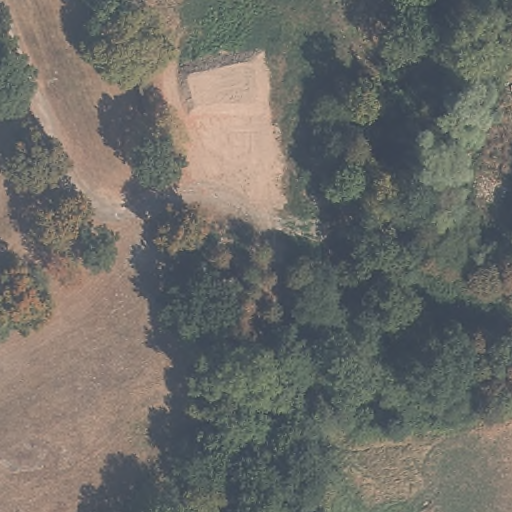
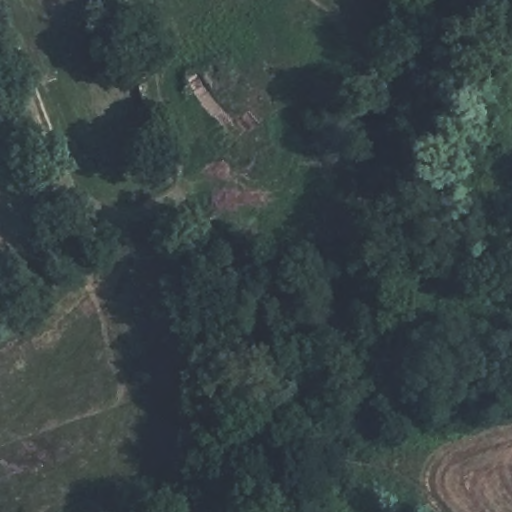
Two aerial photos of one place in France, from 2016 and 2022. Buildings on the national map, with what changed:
[]

